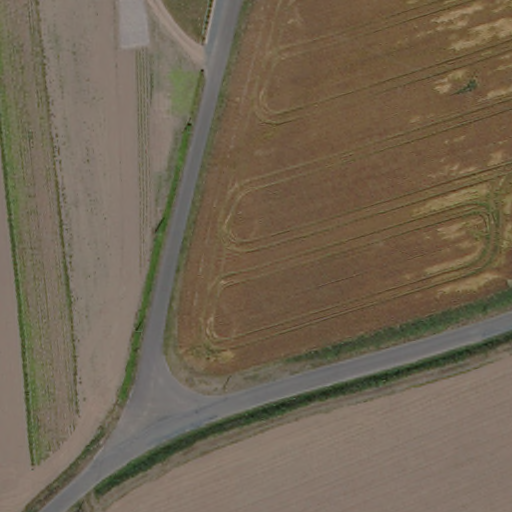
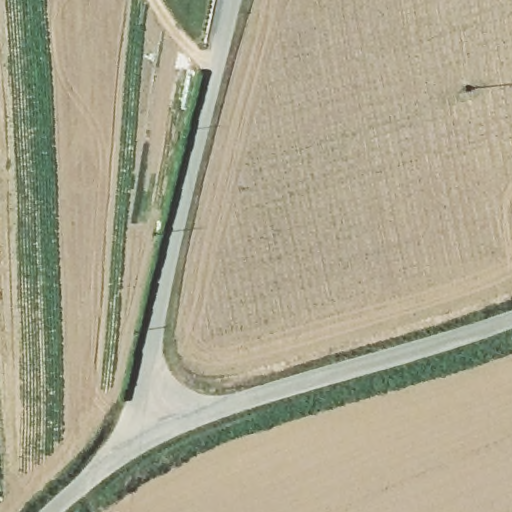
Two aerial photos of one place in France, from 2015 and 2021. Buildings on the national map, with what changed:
[]

